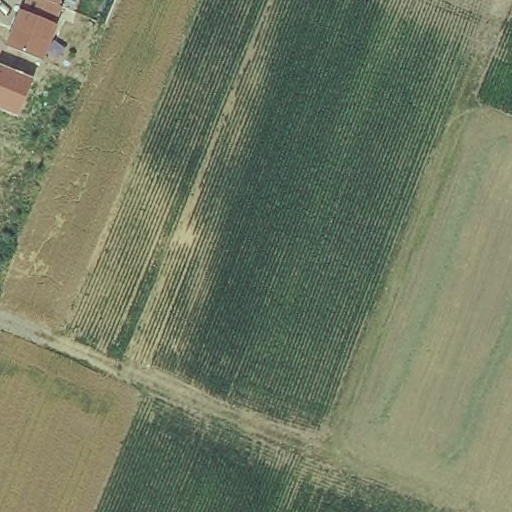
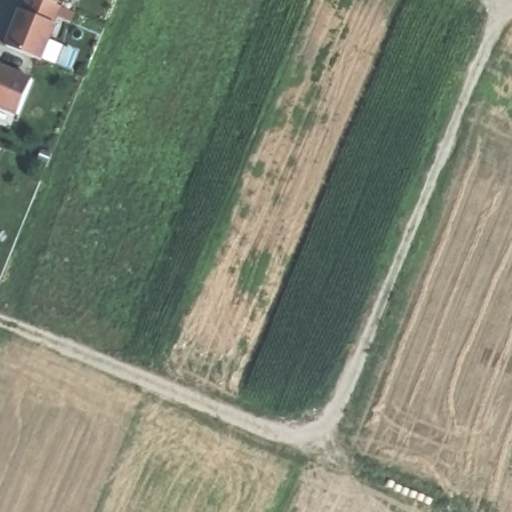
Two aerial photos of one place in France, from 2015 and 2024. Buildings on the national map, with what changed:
unchanged [(64,6),(57,24),(59,25),(45,60),(7,45),(25,0),(61,0),(59,4),(64,6)]
unchanged [(18,116),(0,109),(0,65),(35,79),(18,116)]

